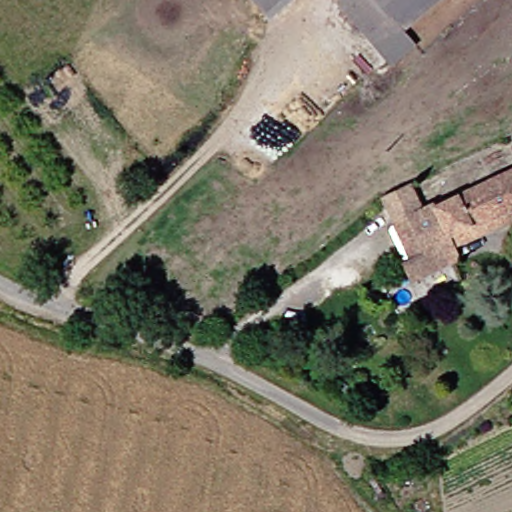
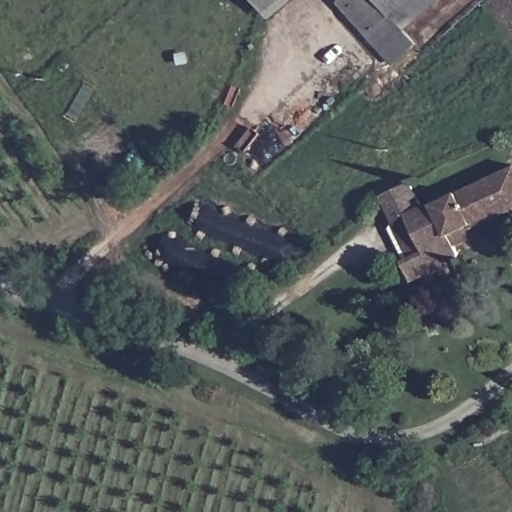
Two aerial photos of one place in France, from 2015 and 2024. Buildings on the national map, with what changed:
unchanged [(257,10),(249,0),(270,0),(257,10)]
unchanged [(380,10),(405,40),(382,60),(330,1),(331,0),(392,0),(380,10)]
unchanged [(387,196),(410,189),(421,212),(504,177),(512,196),(512,216),(462,237),(460,232),(440,240),(452,267),(430,275),(403,287),(395,266),(406,261),(390,226),(378,199),(387,196)]

